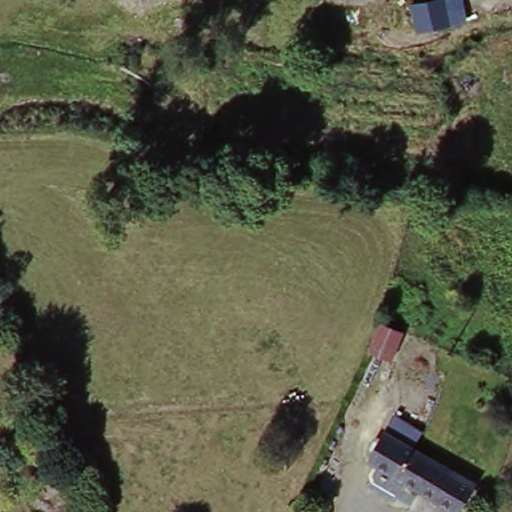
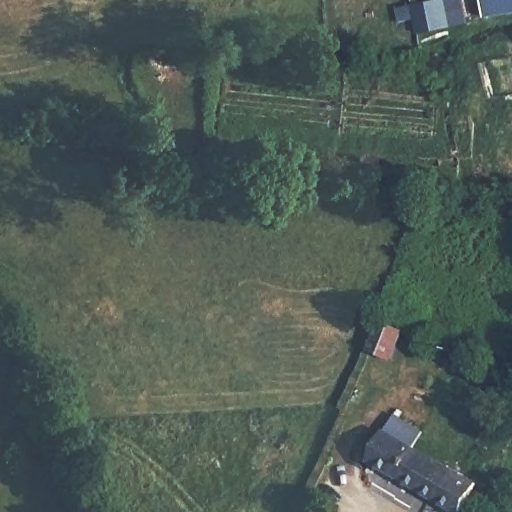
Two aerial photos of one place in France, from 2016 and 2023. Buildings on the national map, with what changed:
unchanged [(422,31),(416,2),(429,0),(462,0),(467,22),(422,31)]
new [(483,0),(512,0),(512,13),(485,17),(483,0)]
unchanged [(393,333),(387,348),(369,343),(377,327),(393,333)]
unchanged [(411,452),(483,488),(469,512),(457,512),(374,466),(392,437),(411,452)]

